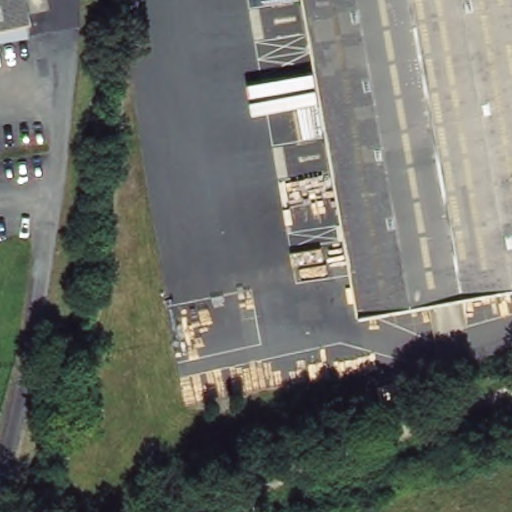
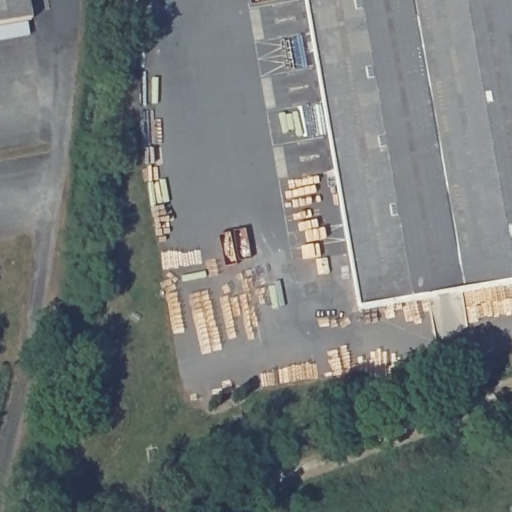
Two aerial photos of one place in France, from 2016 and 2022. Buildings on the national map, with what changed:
unchanged [(27,0),(31,20),(27,20),(29,33),(0,38),(0,0),(27,0)]
unchanged [(347,250),(303,0),(512,0),(512,283),(357,310),(347,250)]

